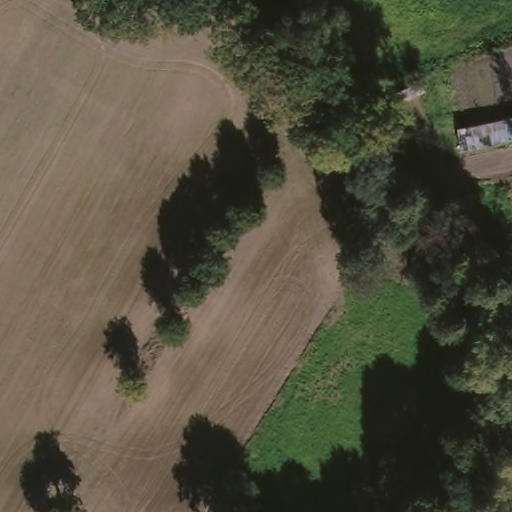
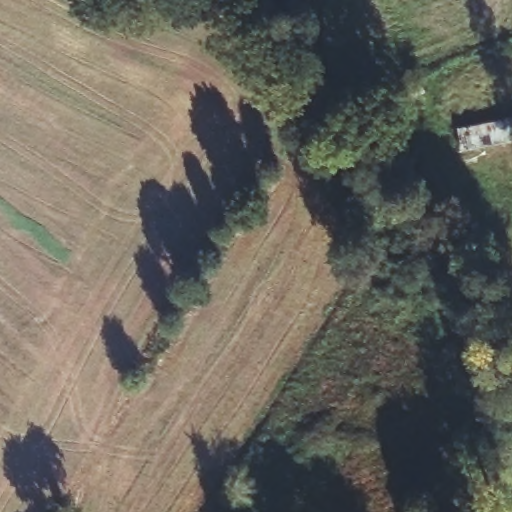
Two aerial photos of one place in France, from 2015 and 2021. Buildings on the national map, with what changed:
unchanged [(472,149),(467,126),(479,125),(512,119),(512,143),(495,146),(472,149)]

